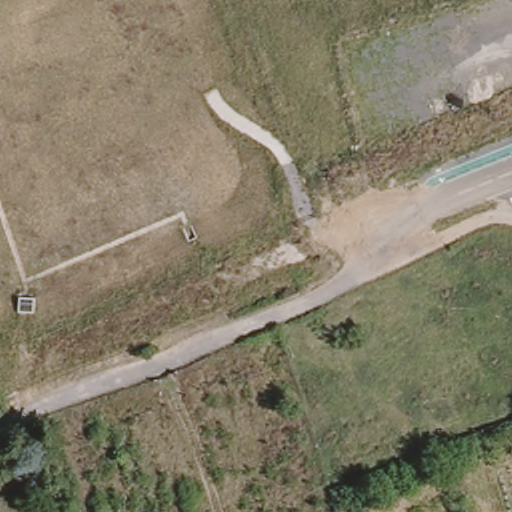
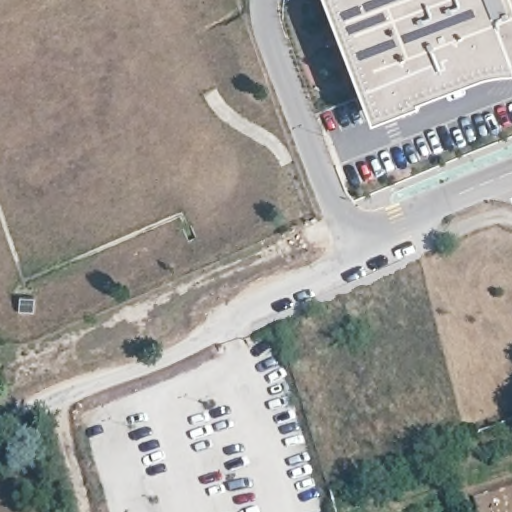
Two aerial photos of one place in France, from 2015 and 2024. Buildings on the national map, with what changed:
new [(510,66),(482,69),(462,76),(431,88),(411,96),(411,99),(366,116),(321,0),(512,0),(512,65),(510,66)]
demolished [(462,484),(497,471),(510,512),(471,512),(462,484)]

